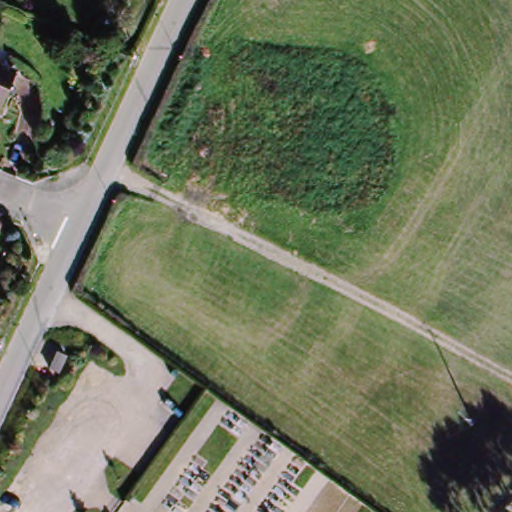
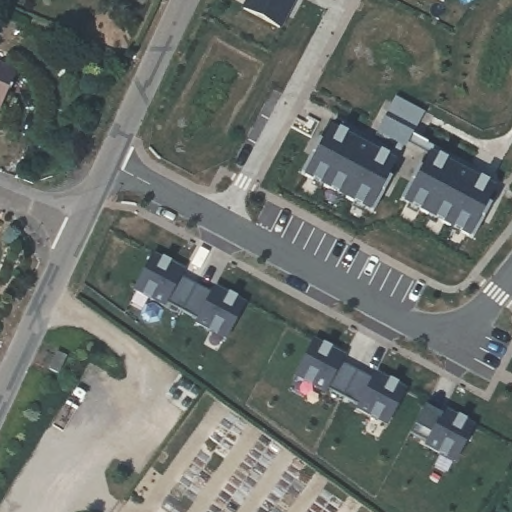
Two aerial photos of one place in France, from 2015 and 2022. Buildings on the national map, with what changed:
new [(248,0),(292,0),(277,28),(243,10),(248,0)]
new [(441,5),(432,0),(444,0),(441,5)]
unchanged [(0,96),(0,63),(11,67),(0,96)]
new [(392,153),(403,132),(383,122),(395,99),(425,114),(412,137),(490,178),(486,185),(429,156),(405,143),(394,164),(337,134),(341,126),(392,153)]
new [(317,143),(321,145),(329,130),(337,134),(394,164),(385,179),(389,181),(372,213),(300,175),(317,143)]
new [(417,169),(421,171),(429,156),(486,185),(494,189),(485,205),(489,207),(472,238),(401,201),(417,169)]
new [(152,256),(182,272),(180,277),(211,294),(214,289),(244,305),(226,339),(195,323),(197,320),(165,303),(164,306),(134,290),(152,256)]
new [(313,342),(344,358),(341,363),(372,380),(375,375),(405,391),(387,425),(357,409),(359,406),(327,389),(325,392),(295,376),(313,342)]
new [(425,408),(441,416),(444,412),(474,428),(456,462),(425,445),(427,442),(411,434),(425,408)]

